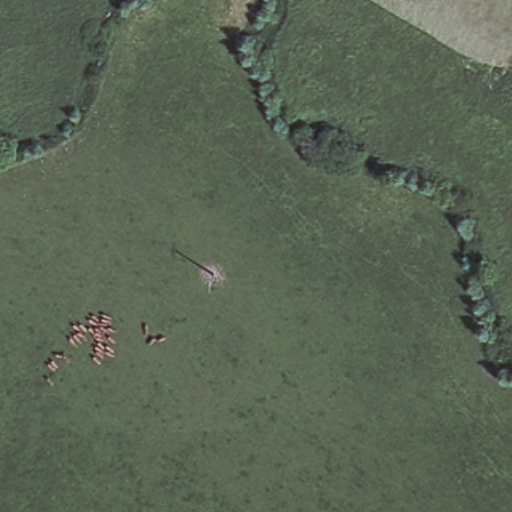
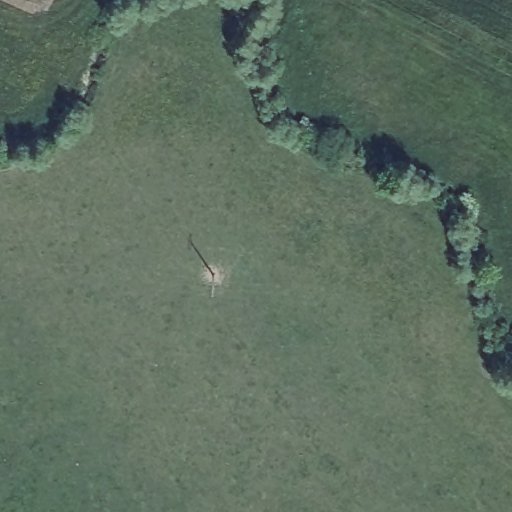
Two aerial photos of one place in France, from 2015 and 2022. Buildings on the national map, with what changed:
[]

